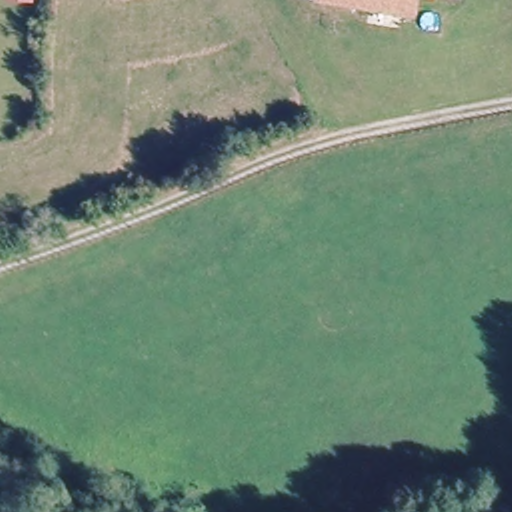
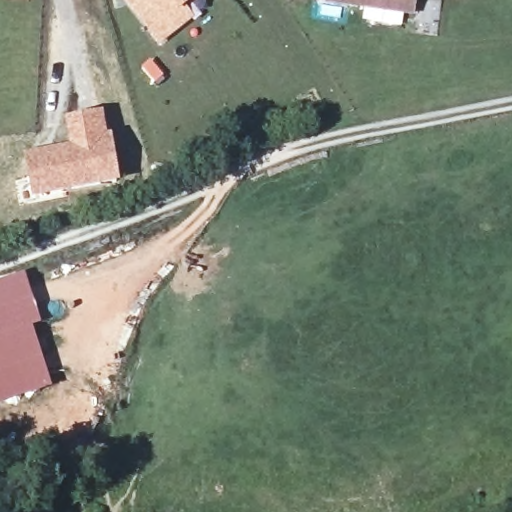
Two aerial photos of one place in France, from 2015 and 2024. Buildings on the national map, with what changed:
new [(3,0),(33,0),(33,4),(3,2),(3,0)]
new [(187,8),(195,19),(159,47),(122,0),(198,0),(187,8)]
unchanged [(415,16),(318,0),(319,0),(418,0),(415,16)]
new [(68,145),(64,121),(104,113),(108,134),(111,133),(121,185),(31,200),(22,156),(68,145)]
new [(0,406),(0,282),(25,273),(41,325),(32,327),(51,389),(0,406)]

